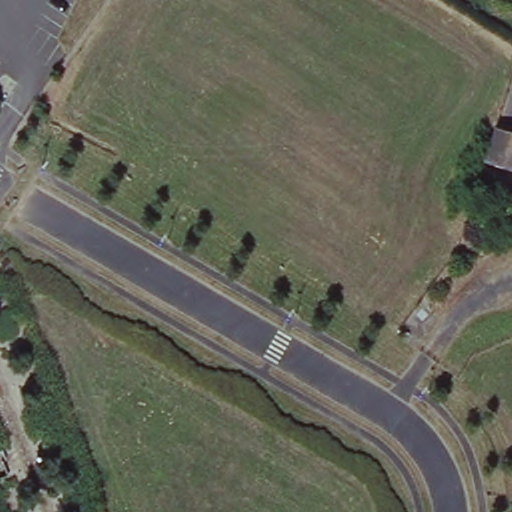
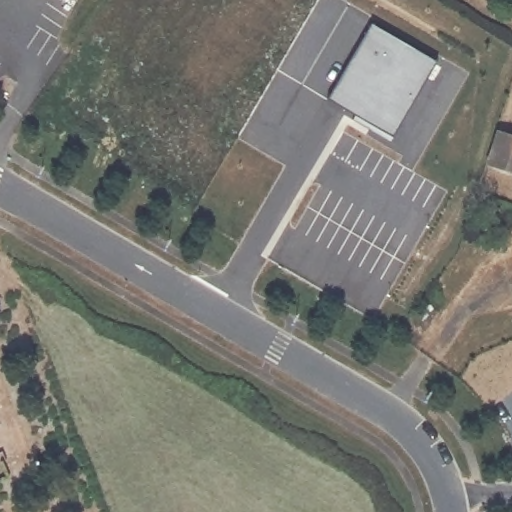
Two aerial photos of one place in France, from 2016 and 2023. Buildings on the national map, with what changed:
new [(393,136),(330,99),(372,25),(436,62),(393,136)]
unchanged [(512,136),(512,173),(490,166),(500,133),(512,136)]

